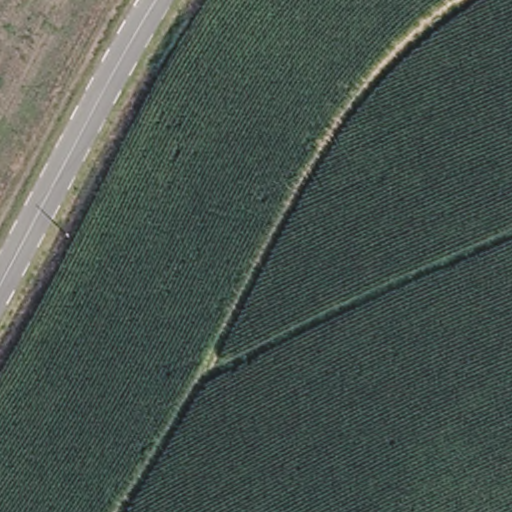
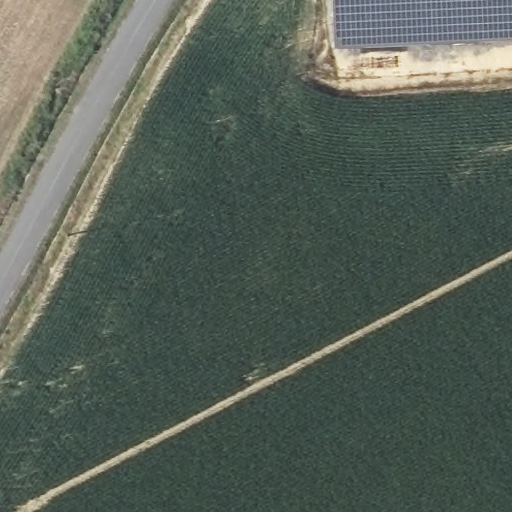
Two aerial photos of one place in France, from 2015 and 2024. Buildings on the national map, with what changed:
new [(335,48),(333,0),(512,0),(512,40),(335,48)]

